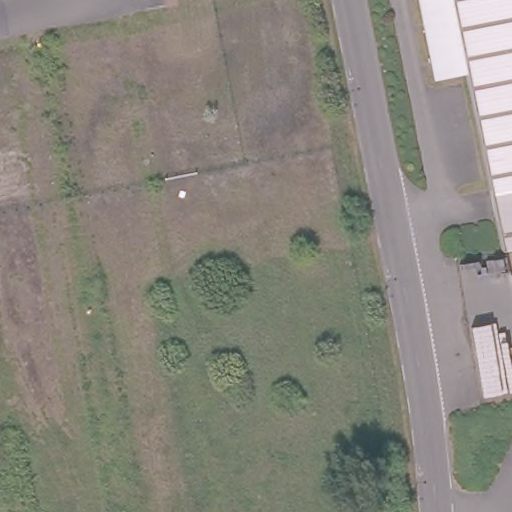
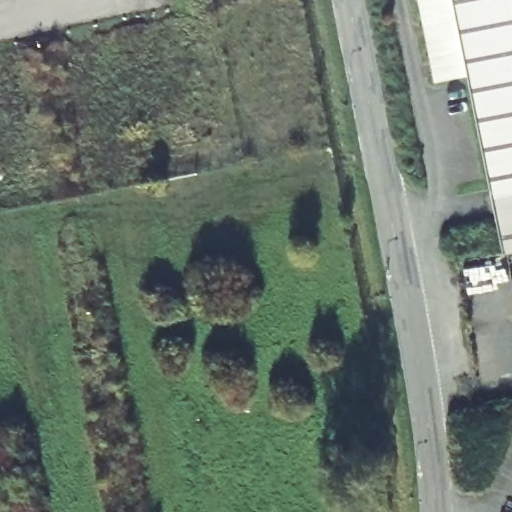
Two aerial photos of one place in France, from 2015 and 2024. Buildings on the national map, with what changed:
unchanged [(484,245),(448,71),(417,76),(402,0),(512,0),(512,239),(484,245)]

